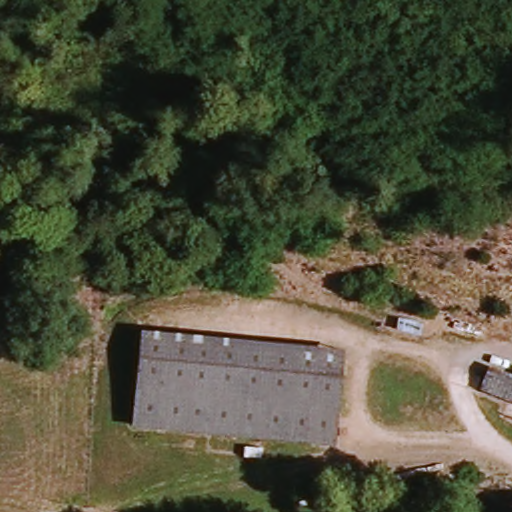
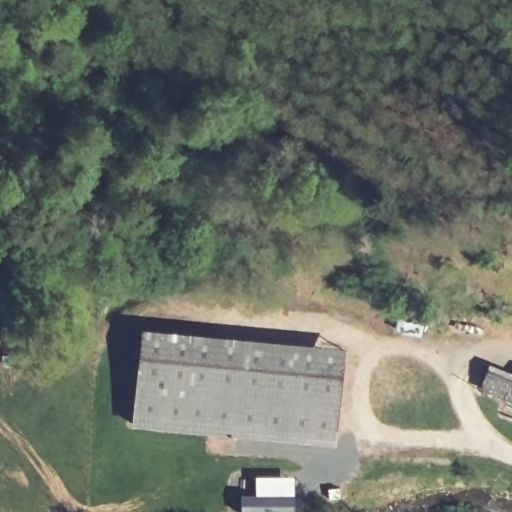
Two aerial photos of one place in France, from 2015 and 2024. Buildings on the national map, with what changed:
unchanged [(338,445),(135,421),(142,329),(347,349),(338,445)]
unchanged [(485,388),(491,371),(512,381),(512,400),(508,399),(485,388)]
new [(295,475),(295,494),(295,512),(241,512),(240,494),(254,494),(254,476),(295,475)]

